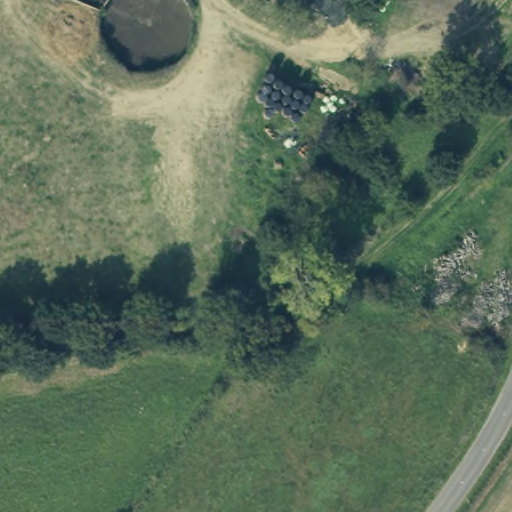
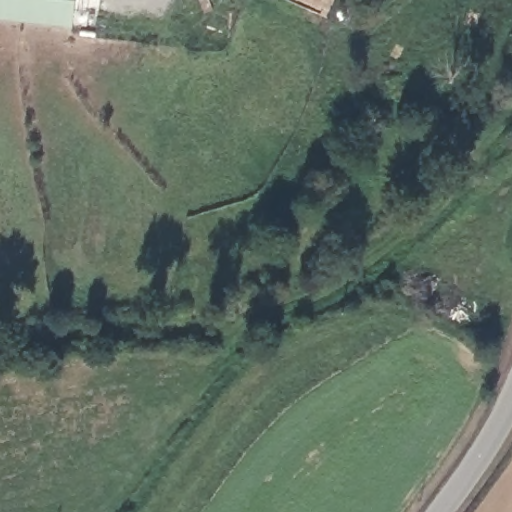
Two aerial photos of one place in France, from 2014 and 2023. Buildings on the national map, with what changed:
new [(72,28),(0,20),(0,0),(74,0),(72,28)]

